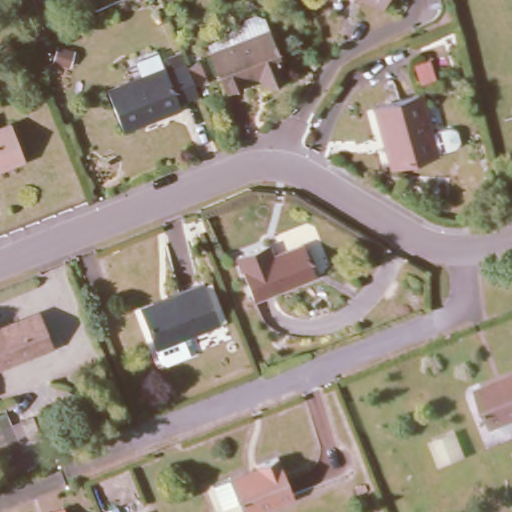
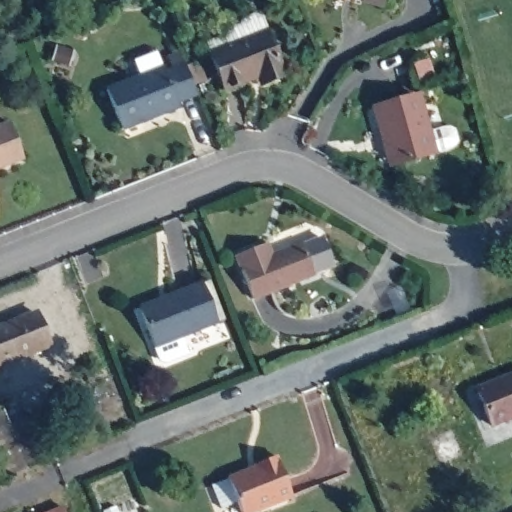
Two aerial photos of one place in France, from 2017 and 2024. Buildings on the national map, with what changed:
unchanged [(364,0),(384,0),(381,7),(364,0)]
unchanged [(266,84),(261,72),(247,77),(248,81),(228,89),(214,52),(233,44),(229,36),(227,35),(230,29),(232,30),(245,25),(242,23),(244,18),(247,19),(259,15),(265,17),(288,76),(266,84)]
unchanged [(178,101),(121,124),(105,83),(163,62),(165,65),(184,58),(185,60),(196,56),(203,74),(192,78),(196,89),(177,97),(178,101)]
unchanged [(381,135),(373,107),(417,95),(433,152),(393,164),(389,165),(381,135)]
unchanged [(14,122),(27,157),(0,167),(0,127),(14,122)]
unchanged [(235,255),(265,243),(271,254),(301,243),(314,273),(252,297),(235,255)]
unchanged [(217,321),(154,346),(140,310),(139,306),(173,293),(202,282),(217,321)]
unchanged [(36,312),(48,345),(0,363),(0,326),(36,312)]
unchanged [(477,391),(475,387),(505,376),(512,373),(512,416),(490,424),(477,391)]
unchanged [(0,462),(0,427),(31,415),(47,458),(5,474),(0,462)]
unchanged [(228,477),(256,465),(255,463),(275,454),(292,495),(250,512),(241,512),(228,477)]
unchanged [(62,511),(62,512),(61,512),(62,511)]

